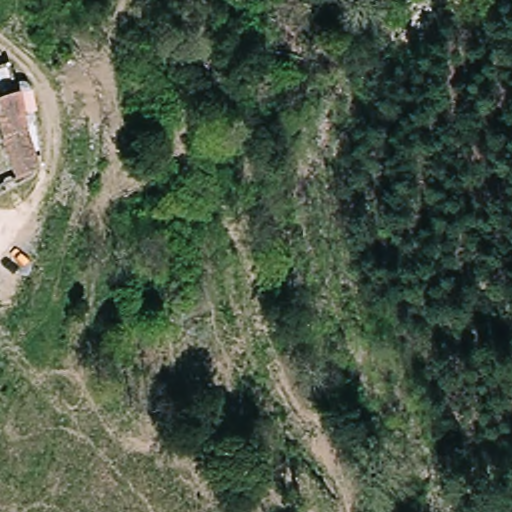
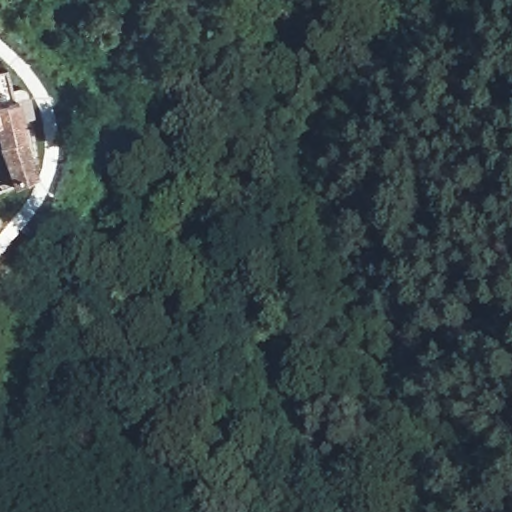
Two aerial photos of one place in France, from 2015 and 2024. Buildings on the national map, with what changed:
unchanged [(10,85),(23,90),(30,115),(17,118),(35,173),(11,181),(0,146),(0,98),(13,95),(10,85)]

